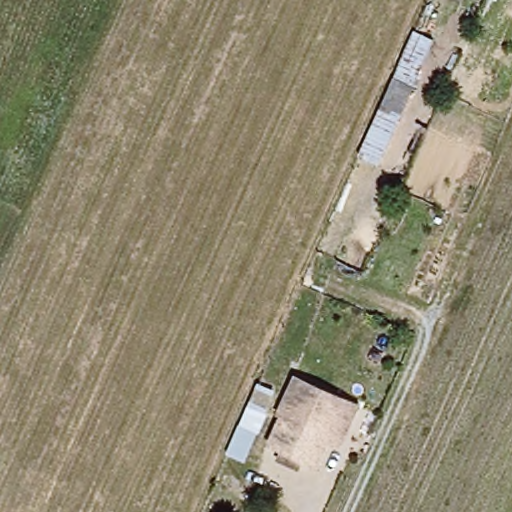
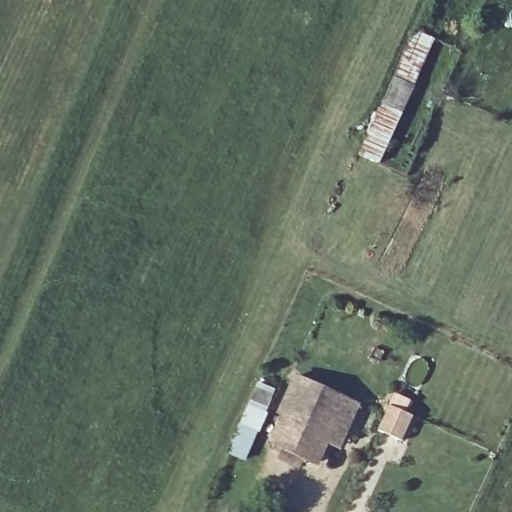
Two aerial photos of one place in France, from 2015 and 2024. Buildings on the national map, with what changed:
unchanged [(410,90),(375,166),(370,164),(355,156),(389,79),(405,86),(410,90)]
unchanged [(331,450),(322,444),(312,468),(266,448),(278,420),(270,417),(288,381),(340,405),(348,409),(331,450)]
unchanged [(254,382),(271,391),(240,460),(221,453),(254,382)]
new [(388,406),(411,416),(400,441),(377,430),(388,406)]

